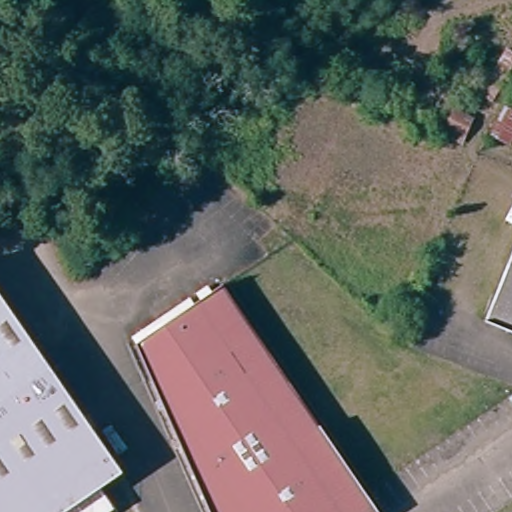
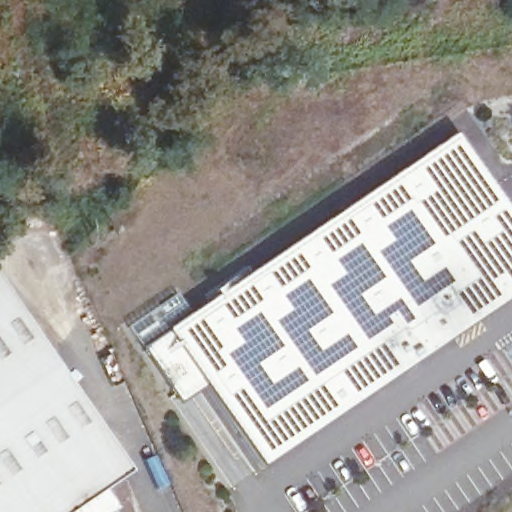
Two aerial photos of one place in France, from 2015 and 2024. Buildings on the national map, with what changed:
demolished [(501,85),(490,104),(481,99),(491,80),(501,85)]
demolished [(504,107),(512,111),(512,132),(507,141),(491,132),(504,107)]
new [(512,219),(512,292),(258,465),(204,387),(180,402),(143,348),(168,335),(165,331),(453,134),(512,219)]
demolished [(512,245),(512,327),(486,317),(512,245)]
demolished [(210,512),(134,338),(222,278),(377,510),(374,512),(210,512)]
unchanged [(99,486),(61,512),(0,512),(0,284),(125,467),(99,486)]
new [(512,348),(512,362),(506,352),(512,348)]
unchanged [(114,507),(106,512),(61,512),(99,486),(114,507)]

